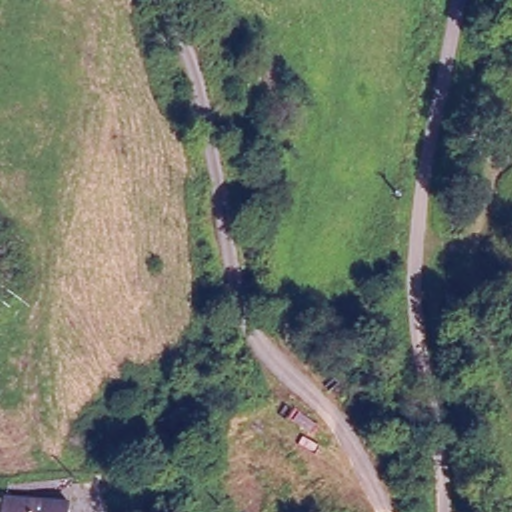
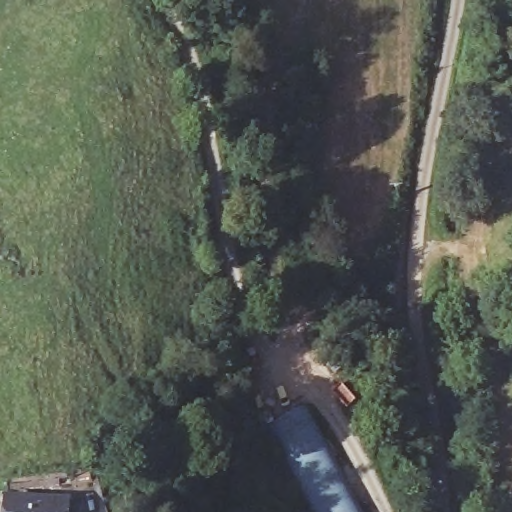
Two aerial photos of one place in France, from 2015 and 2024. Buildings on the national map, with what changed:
new [(265,427),(310,405),(364,512),(309,512),(265,427)]
unchanged [(69,512),(2,512),(1,498),(69,499),(69,512)]

